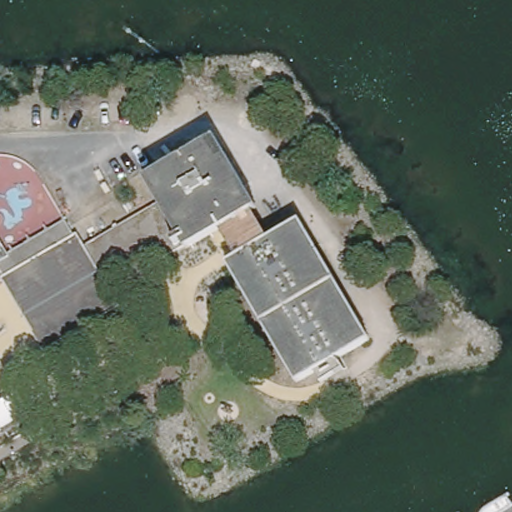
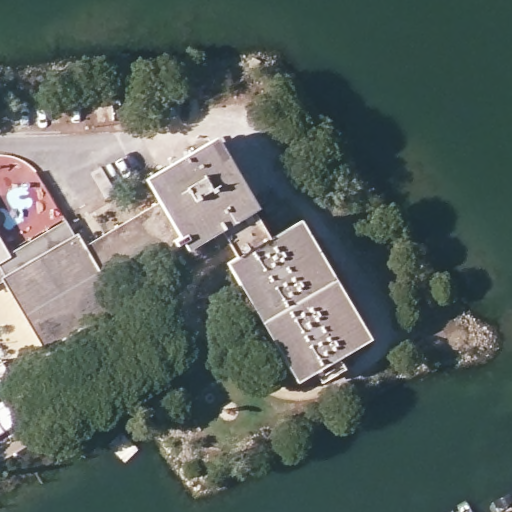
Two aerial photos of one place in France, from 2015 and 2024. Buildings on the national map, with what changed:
unchanged [(7,285),(0,273),(0,252),(0,253),(13,274),(82,234),(87,243),(162,201),(152,181),(211,148),(265,241),(298,222),(348,307),(367,341),(297,382),(250,300),(229,263),(240,255),(225,226),(113,289),(124,309),(47,352),(7,285)]
unchanged [(0,253),(70,213),(82,234),(13,274),(0,253)]
unchanged [(0,288),(0,273),(7,285),(0,288)]

